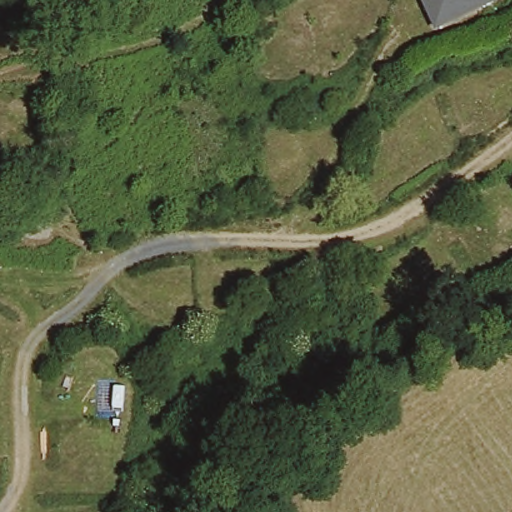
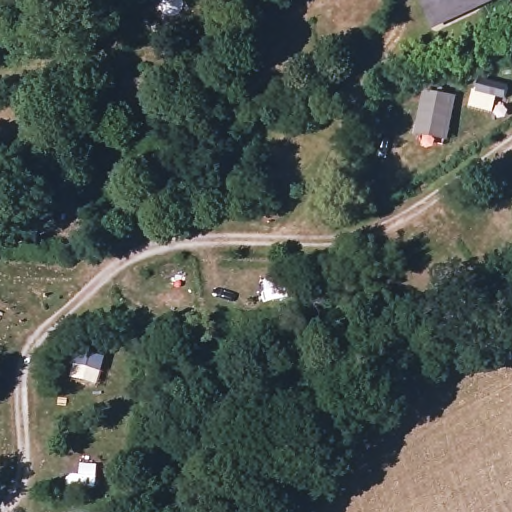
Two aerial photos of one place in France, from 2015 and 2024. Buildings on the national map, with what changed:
unchanged [(433,32),(416,0),(505,0),(433,32)]
demolished [(312,22),(318,2),(342,9),(335,30),(312,22)]
new [(422,88),(457,94),(447,140),(412,133),(422,88)]
unchanged [(66,146),(53,149),(50,131),(65,129),(66,146)]

